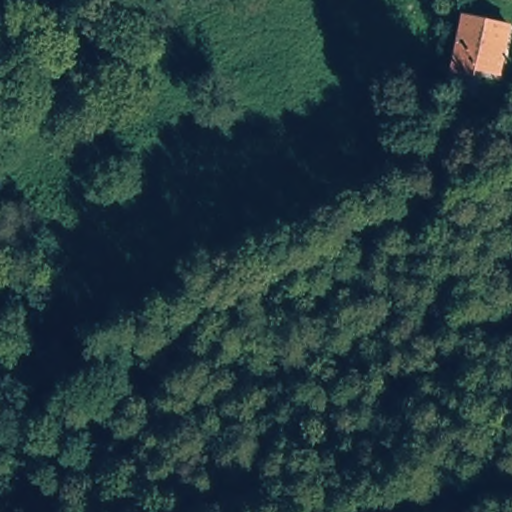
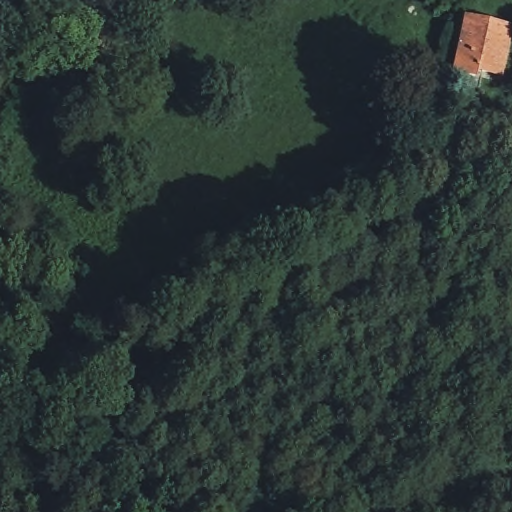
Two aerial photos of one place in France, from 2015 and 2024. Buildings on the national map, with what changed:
unchanged [(512,28),(512,51),(508,79),(483,73),(481,81),(459,76),(466,20),(512,28)]

